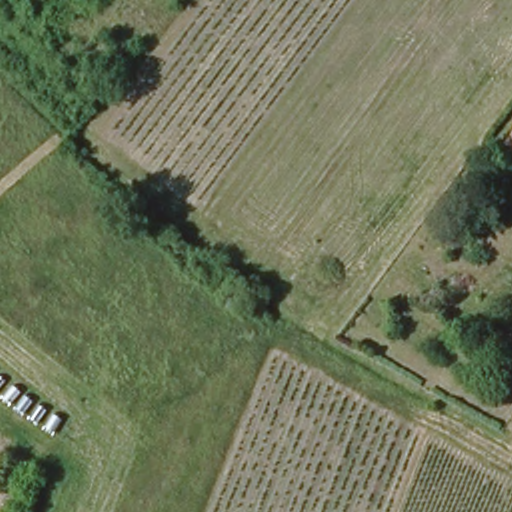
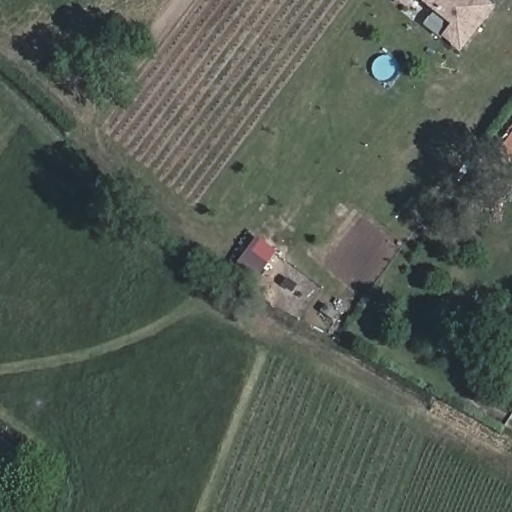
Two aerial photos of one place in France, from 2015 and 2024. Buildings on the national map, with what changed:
new [(404,7),(395,0),(411,0),(404,7)]
new [(451,26),(417,0),(486,0),(496,8),(460,52),(443,38),(451,26)]

